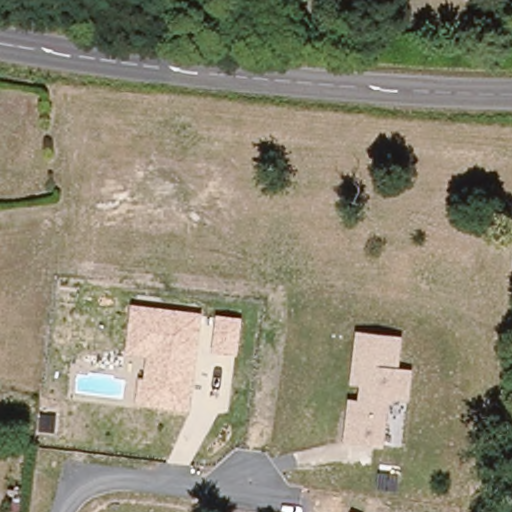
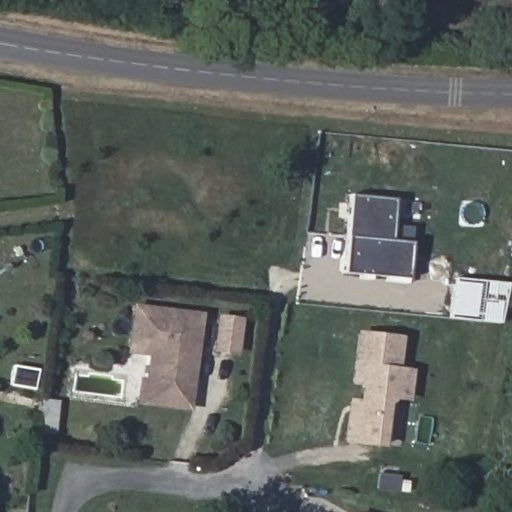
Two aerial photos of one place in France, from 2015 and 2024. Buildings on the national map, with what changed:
new [(343,274),(350,196),(393,200),(390,242),(410,244),(407,279),(343,274)]
new [(446,319),(450,276),(508,283),(500,324),(446,319)]
unchanged [(147,357),(126,355),(132,305),(202,313),(191,411),(136,405),(140,378),(145,379),(147,357)]
unchanged [(403,338),(401,369),(414,370),(410,402),(392,400),(385,447),(343,443),(350,399),(359,400),(361,387),(352,384),(358,333),(403,338)]

